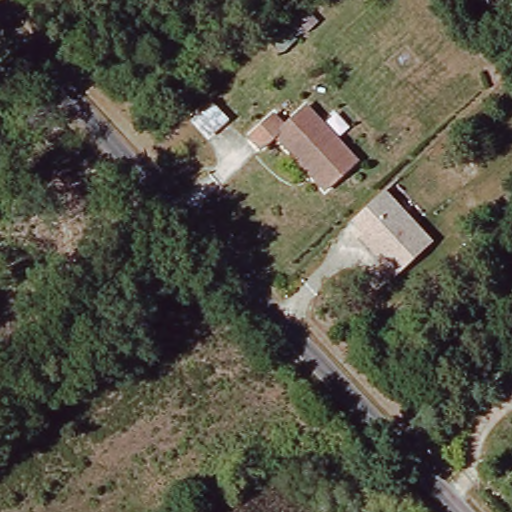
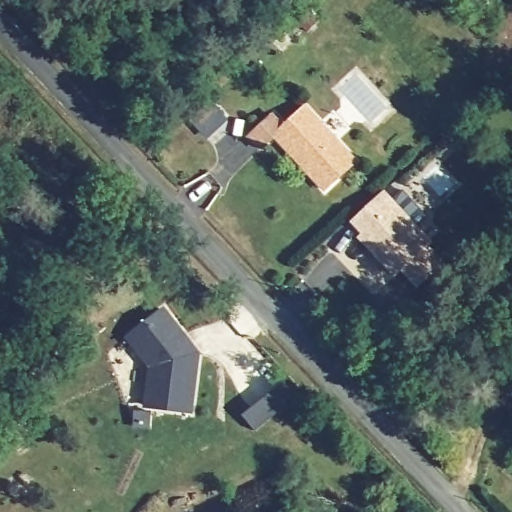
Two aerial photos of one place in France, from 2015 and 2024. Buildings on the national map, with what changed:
unchanged [(271,41),(279,34),(290,45),(277,58),(265,46),(271,41)]
unchanged [(285,127),(307,106),(358,161),(327,190),(276,136),(263,150),(250,138),(274,116),(285,127)]
unchanged [(354,237),(359,233),(349,221),(384,187),(433,241),(393,277),(354,237)]
new [(164,305),(199,354),(192,414),(146,410),(147,368),(125,338),(164,305)]

